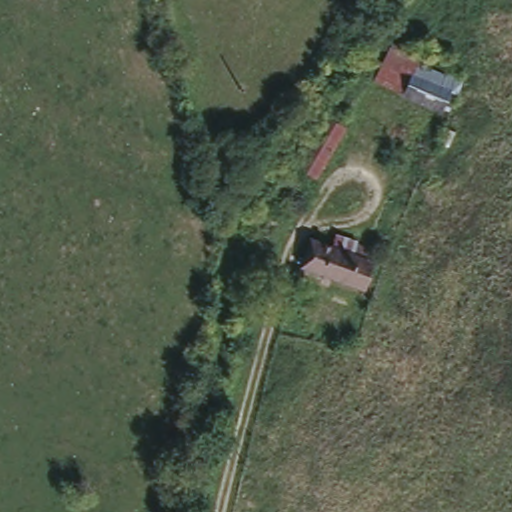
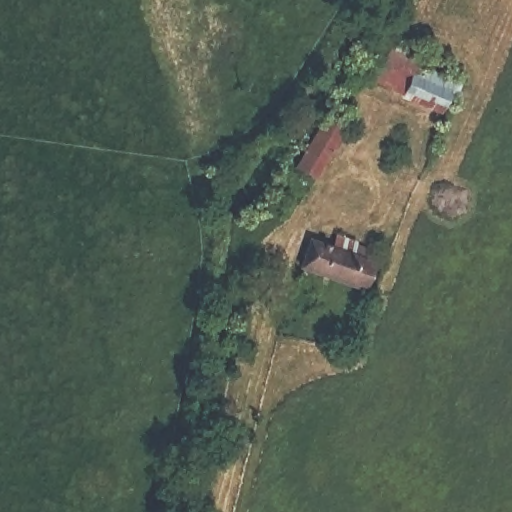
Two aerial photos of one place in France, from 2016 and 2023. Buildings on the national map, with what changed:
unchanged [(373,85),(389,47),(419,60),(417,66),(403,97),(373,85)]
unchanged [(417,66),(446,77),(449,73),(464,78),(456,95),(447,92),(439,112),(403,97),(417,66)]
unchanged [(328,117),(349,129),(319,176),(299,163),(328,117)]
unchanged [(312,241),(358,257),(361,250),(379,256),(368,291),(302,270),(312,241)]

